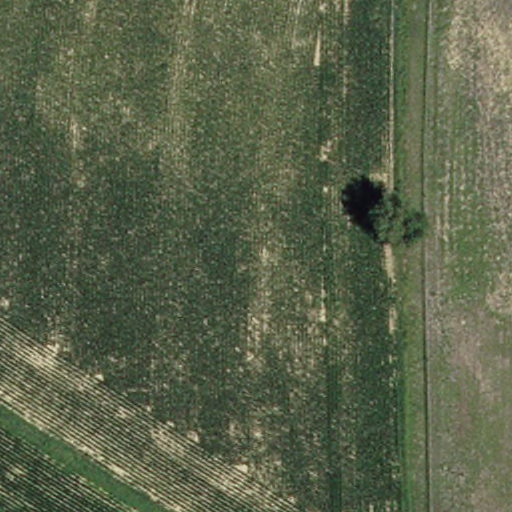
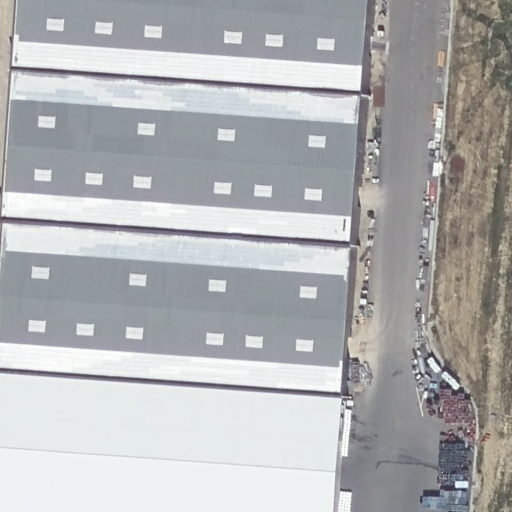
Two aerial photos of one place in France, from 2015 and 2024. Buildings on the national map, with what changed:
new [(357,246),(340,512),(0,512),(0,343),(10,220),(25,0),(375,0),(357,246)]

